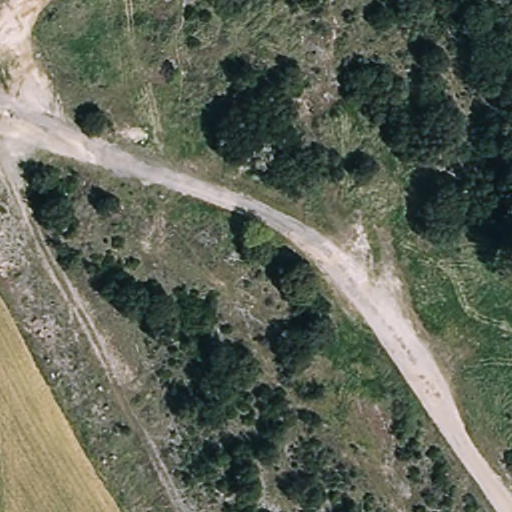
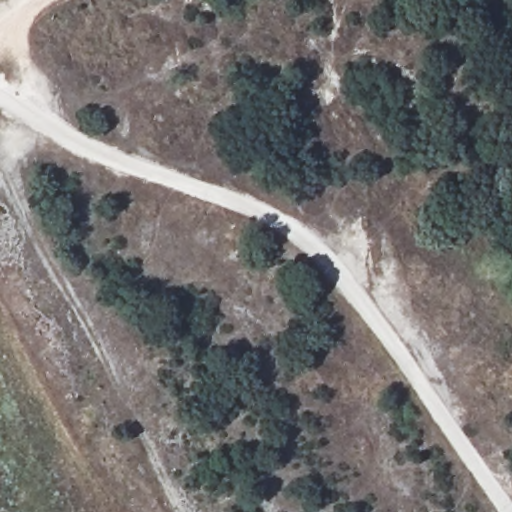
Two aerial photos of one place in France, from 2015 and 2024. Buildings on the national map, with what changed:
[]

